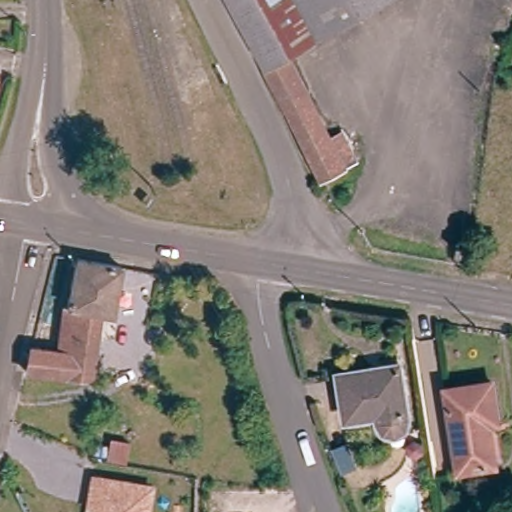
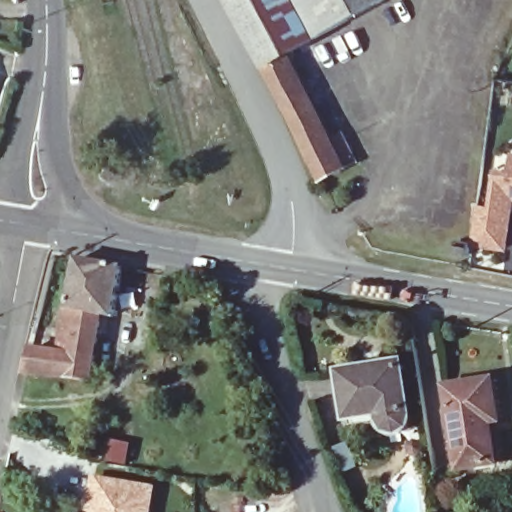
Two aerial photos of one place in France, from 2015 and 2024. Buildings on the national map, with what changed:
unchanged [(227,0),(394,0),(293,55),(348,170),(318,184),(262,69),(227,0)]
new [(508,252),(475,246),(479,204),(490,206),(495,168),(510,170),(511,152),(512,152),(512,222),(508,252)]
unchanged [(471,241),(470,254),(457,252),(459,240),(471,241)]
unchanged [(112,317),(100,315),(90,379),(27,373),(32,350),(32,349),(57,352),(75,260),(121,270),(112,317)]
unchanged [(410,417),(405,423),(402,427),(398,429),(394,429),(389,427),(384,425),(381,422),(379,417),(377,414),(376,409),(346,413),(340,369),(402,360),(410,417)]
unchanged [(498,420),(490,422),(496,465),(460,470),(448,389),(492,383),(498,420)]
unchanged [(131,444),(127,464),(107,461),(111,440),(131,444)]
unchanged [(156,486),(152,512),(85,512),(91,475),(156,486)]

